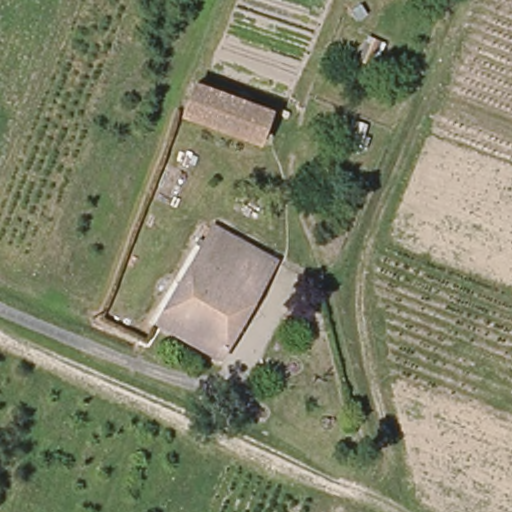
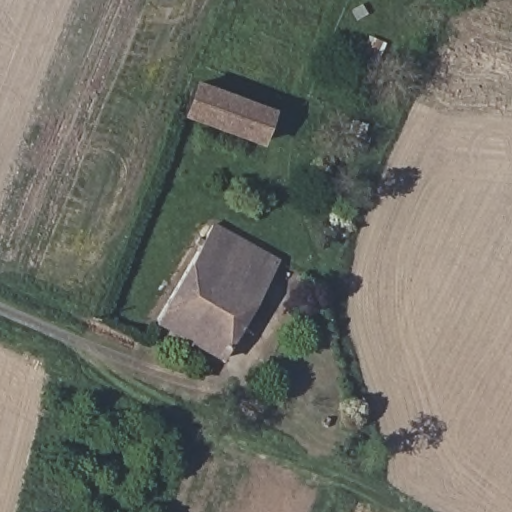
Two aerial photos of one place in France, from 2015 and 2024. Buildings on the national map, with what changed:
unchanged [(257,141),(181,115),(193,84),(268,110),(257,141)]
unchanged [(273,265),(217,359),(155,322),(211,227),(273,265)]

